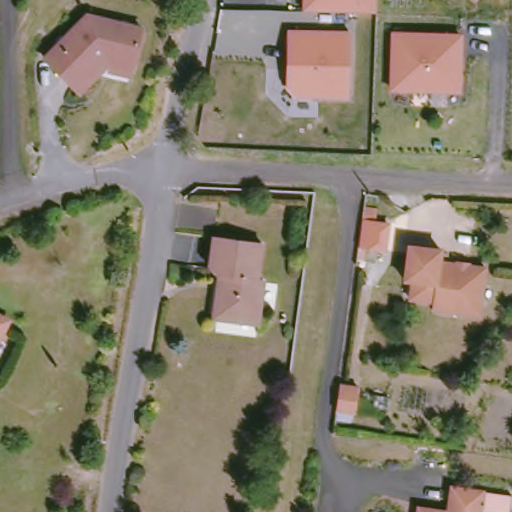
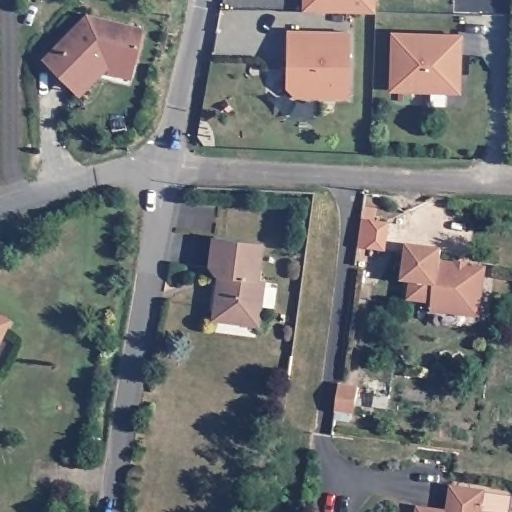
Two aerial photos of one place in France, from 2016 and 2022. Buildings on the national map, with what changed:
unchanged [(305,10),(305,0),(378,0),(377,12),(305,10)]
unchanged [(111,59),(77,92),(47,62),(92,17),(145,30),(139,63),(111,59)]
unchanged [(351,100),(296,98),(287,87),(290,29),(353,30),(351,100)]
unchanged [(462,94),(392,92),(393,32),(465,33),(462,94)]
unchanged [(262,282),(257,307),(244,316),(237,315),(235,322),(218,320),(210,309),(213,292),(223,292),(225,284),(215,282),(205,271),(210,237),(262,246),(257,281),(262,282)]
unchanged [(480,287),(476,314),(458,312),(459,306),(408,299),(410,278),(402,277),(407,241),(443,246),(442,258),(460,261),(459,267),(470,268),(470,262),(488,265),(487,282),(480,287)]
unchanged [(4,317),(0,325),(0,315),(4,317)]
unchanged [(335,413),(339,387),(359,390),(356,416),(335,413)]
unchanged [(481,512),(449,512),(452,488),(484,492),(481,512)]
unchanged [(419,508),(445,512),(418,512),(419,508)]

